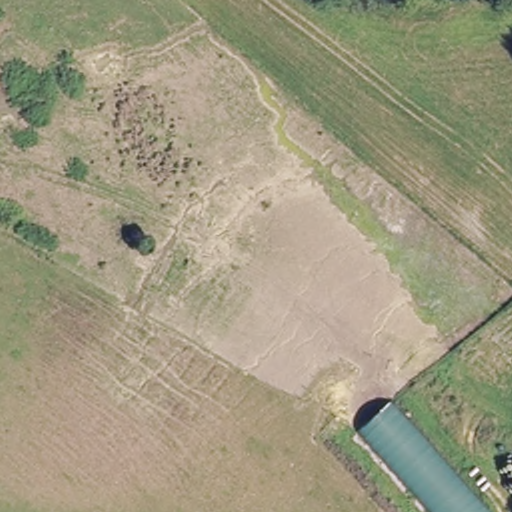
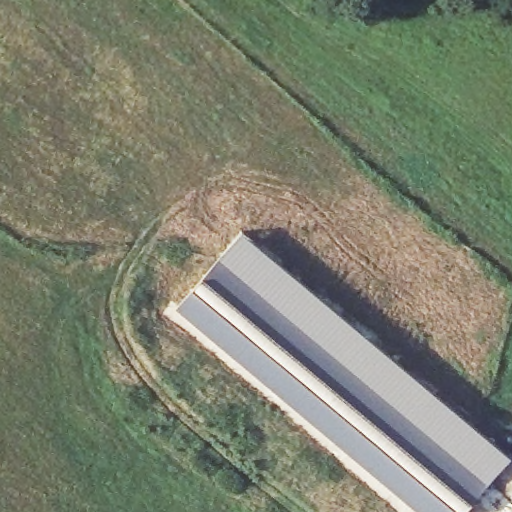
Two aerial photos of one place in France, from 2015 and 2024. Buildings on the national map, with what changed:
new [(490,481),(464,512),(429,512),(181,303),(201,278),(221,255),(490,481)]
demolished [(361,429),(392,402),(484,512),(436,512),(361,429)]

